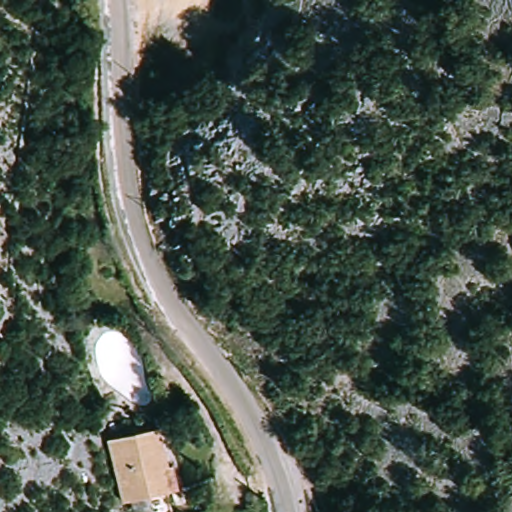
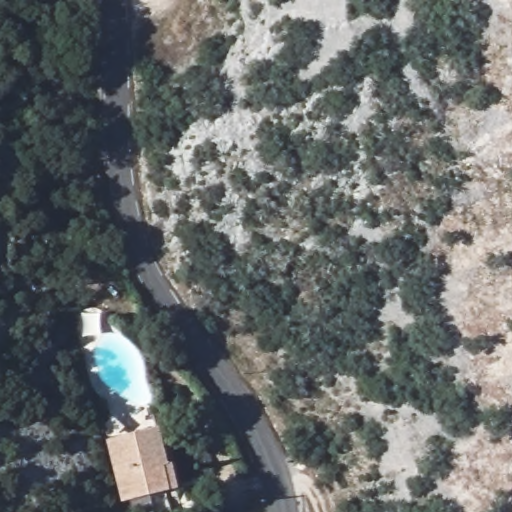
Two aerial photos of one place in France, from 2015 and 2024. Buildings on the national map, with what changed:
unchanged [(151,434),(165,495),(124,505),(107,443),(151,434)]

